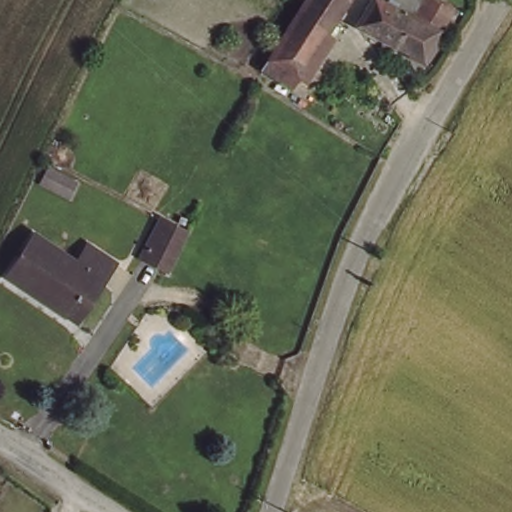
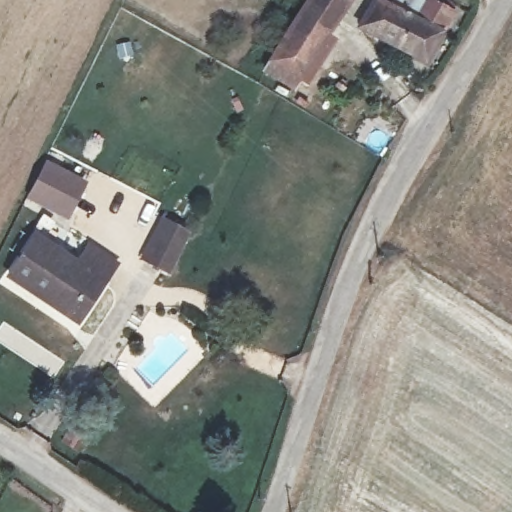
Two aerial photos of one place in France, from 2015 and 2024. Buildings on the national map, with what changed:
unchanged [(271,60),(309,0),(354,0),(304,81),(271,60)]
unchanged [(368,0),(390,0),(409,9),(413,0),(444,0),(447,1),(437,22),(423,51),(359,21),(368,0)]
new [(45,158),(89,181),(69,221),(25,201),(45,158)]
unchanged [(167,267),(147,259),(165,221),(185,230),(167,267)]
unchanged [(75,260),(89,240),(115,260),(76,322),(17,278),(43,238),(75,260)]

